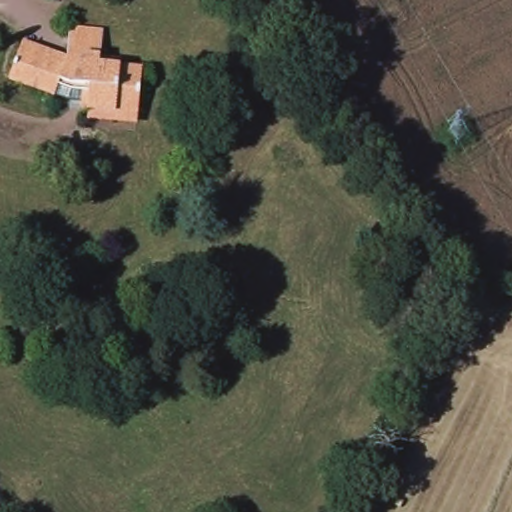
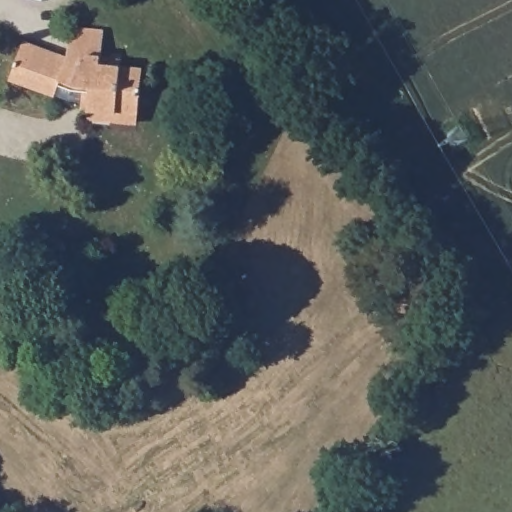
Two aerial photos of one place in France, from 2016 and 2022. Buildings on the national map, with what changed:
unchanged [(82,109),(82,102),(68,100),(55,96),(10,79),(23,42),(67,58),(70,27),(104,30),(101,58),(119,60),(119,67),(143,69),(138,115),(137,125),(88,120),(89,110),(82,109)]

